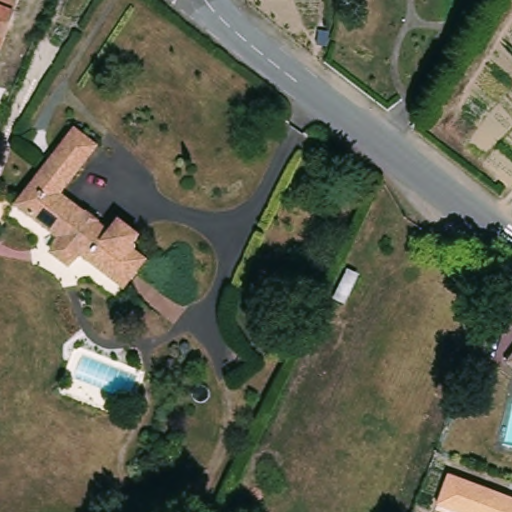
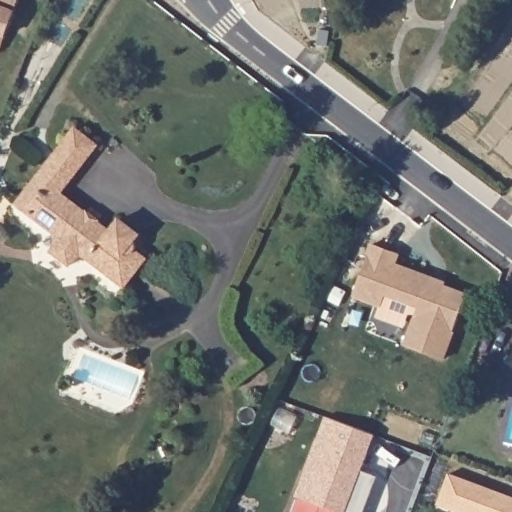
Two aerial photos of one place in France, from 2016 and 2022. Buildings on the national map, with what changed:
unchanged [(19,0),(0,49),(0,0),(19,0)]
unchanged [(119,219),(139,235),(130,246),(146,259),(124,287),(81,255),(68,265),(50,251),(59,237),(15,205),(75,128),(98,145),(61,193),(110,231),(119,219)]
new [(353,297),(368,256),(366,255),(371,244),(399,255),(397,263),(447,281),(446,285),(468,293),(446,360),(403,345),(417,308),(384,295),(381,306),(353,297)]
unchanged [(512,365),(508,362),(512,356),(512,365)]
new [(326,417),(337,421),(374,435),(361,471),(377,477),(364,512),(337,512),(296,496),(318,438),(326,417)]
unchanged [(438,505),(450,475),(512,498),(512,512),(456,512),(438,505)]

